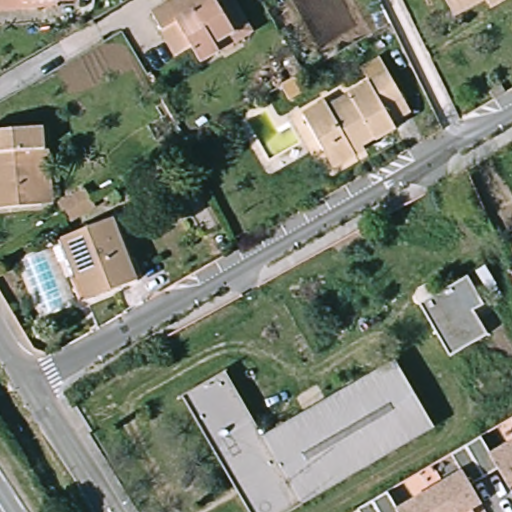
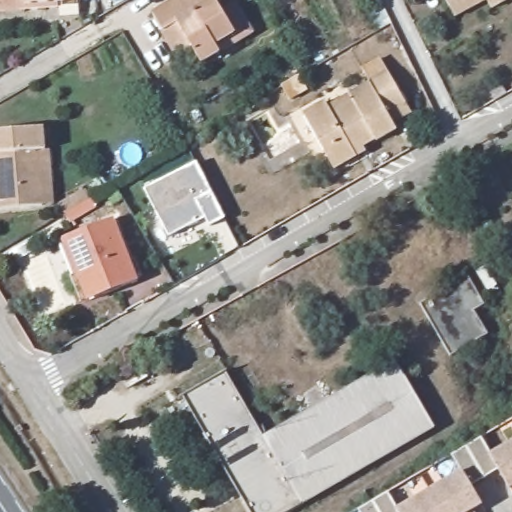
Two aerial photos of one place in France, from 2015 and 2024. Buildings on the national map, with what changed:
unchanged [(0,12),(0,0),(74,0),(57,2),(57,7),(48,7),(0,12)]
unchanged [(200,62),(177,22),(163,30),(154,13),(176,0),(231,0),(250,32),(219,51),(200,62)]
unchanged [(469,10),(452,19),(442,0),(506,0),(474,17),(469,10)]
unchanged [(320,104),(324,112),(362,90),(354,75),(371,66),(399,116),(381,126),(385,134),(365,146),(363,142),(350,149),(354,156),(323,174),(292,120),(320,104)]
unchanged [(288,82),(297,77),(306,92),(289,102),(280,87),(288,82)]
unchanged [(43,129),(44,151),(38,151),(42,205),(0,209),(0,131),(43,129)]
new [(210,227),(206,219),(169,239),(144,190),(197,162),(226,220),(210,227)]
unchanged [(87,302),(62,240),(112,221),(137,282),(87,302)]
unchanged [(450,357),(420,304),(468,277),(484,306),(475,312),(487,332),(450,357)]
unchanged [(433,427),(299,503),(300,505),(288,512),(250,512),(182,396),(226,371),(264,437),(396,362),(433,427)]
unchanged [(491,455),(512,443),(512,486),(510,487),(499,468),(471,485),(463,471),(453,454),(481,437),(491,455)]
unchanged [(482,503),(468,512),(443,512),(430,491),(463,471),(471,485),(482,503)]
unchanged [(430,491),(443,512),(399,512),(397,510),(430,491)]
unchanged [(360,509),(372,502),(387,492),(397,510),(399,512),(362,512),(360,509)]

